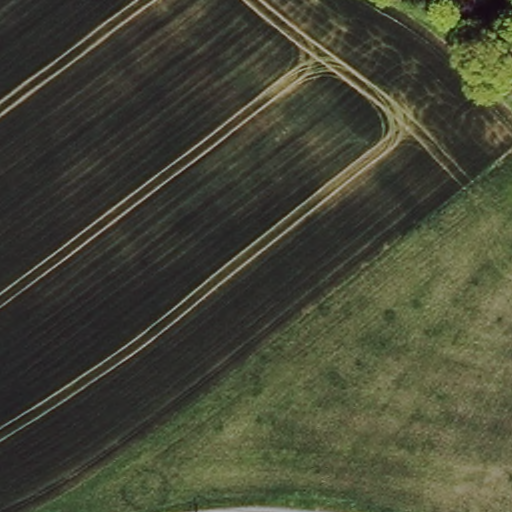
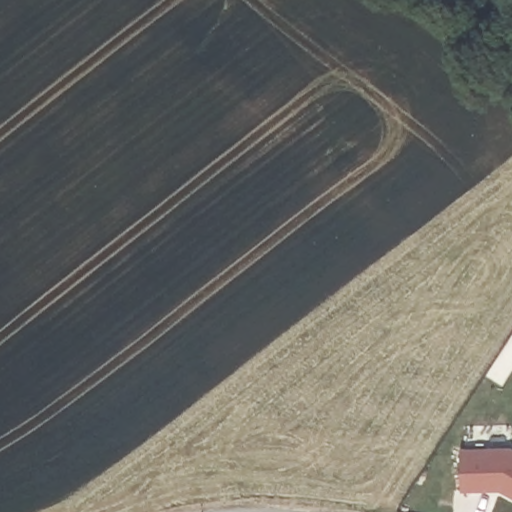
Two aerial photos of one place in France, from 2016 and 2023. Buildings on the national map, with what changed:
new [(500,491),(463,492),(460,449),(511,447),(512,448),(512,498),(500,491)]

